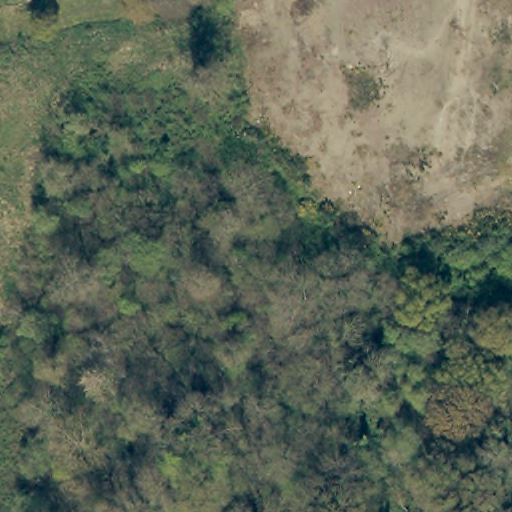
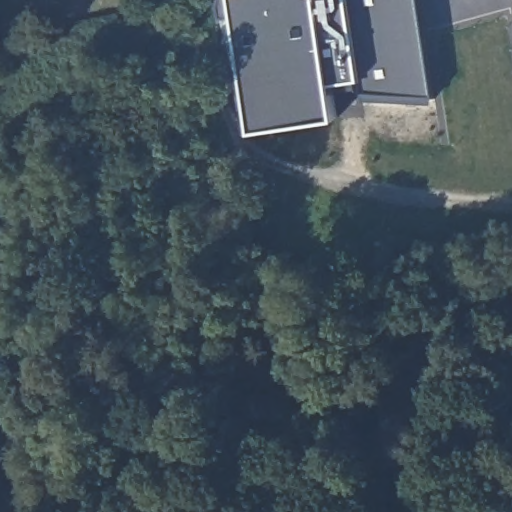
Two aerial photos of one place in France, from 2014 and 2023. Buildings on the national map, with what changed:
new [(362,83),(331,87),(337,121),(255,135),(237,16),(224,17),(224,0),(418,0),(434,105),(363,95),(362,83)]

